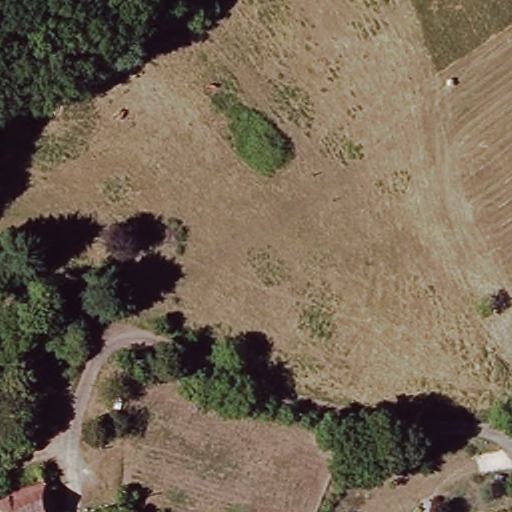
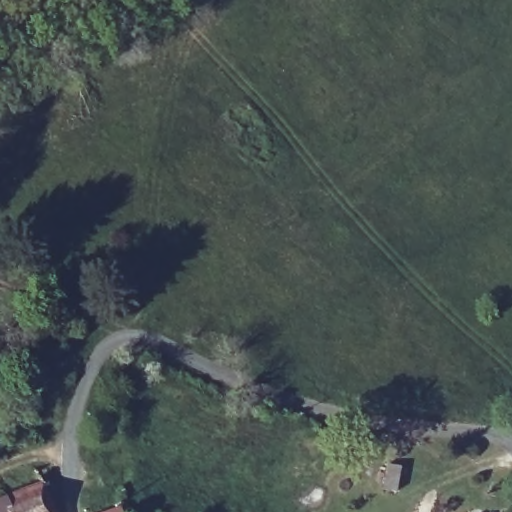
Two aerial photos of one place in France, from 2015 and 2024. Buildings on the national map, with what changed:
unchanged [(31,438),(0,447),(0,424),(25,419),(30,436),(31,438)]
unchanged [(34,469),(55,512),(0,512),(0,481),(34,469)]

